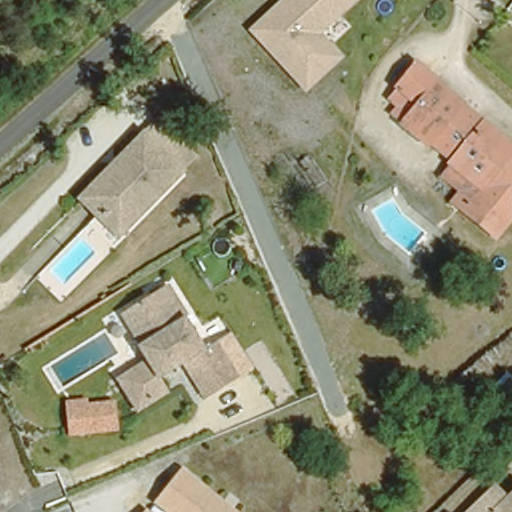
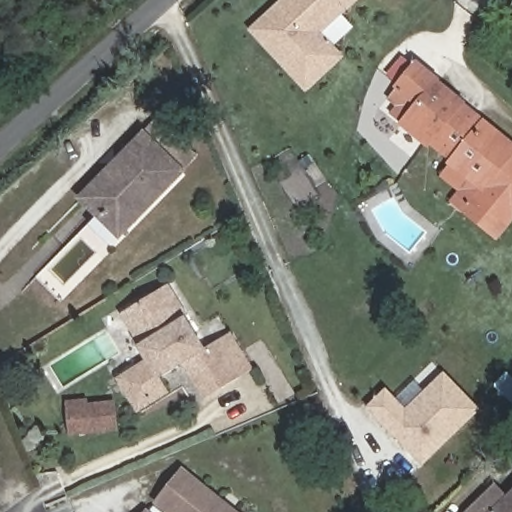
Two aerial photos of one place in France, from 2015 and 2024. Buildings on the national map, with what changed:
unchanged [(282,0),(360,0),(324,32),(346,56),(306,92),(249,30),(282,0)]
unchanged [(464,165),(459,160),(446,150),(443,152),(397,111),(406,101),(400,94),(406,85),(407,85),(425,65),(512,140),(512,204),(508,201),(464,165)]
unchanged [(141,134),(159,115),(198,151),(180,170),(141,134)]
unchanged [(114,161),(141,134),(180,170),(120,231),(117,235),(78,197),(114,161)]
unchanged [(460,200),(467,192),(447,174),(459,160),(464,165),(508,201),(512,204),(512,218),(498,235),(460,200)]
unchanged [(190,375),(181,360),(155,377),(160,387),(134,404),(116,376),(144,360),(135,345),(139,343),(120,312),(162,285),(201,348),(229,333),(248,368),(219,387),(204,396),(190,375)]
new [(421,466),(365,408),(386,387),(406,408),(443,371),(480,410),(421,466)]
new [(512,380),(512,404),(495,387),(506,375),(512,380)]
unchanged [(69,436),(65,398),(90,397),(90,404),(118,401),(120,432),(69,436)]
unchanged [(179,474),(229,512),(163,512),(155,505),(179,474)]
unchanged [(510,497),(512,496),(512,512),(478,512),(497,488),(510,497)]
demolished [(148,512),(143,512),(145,510),(148,512)]
unchanged [(148,512),(147,512),(147,511),(148,512)]

